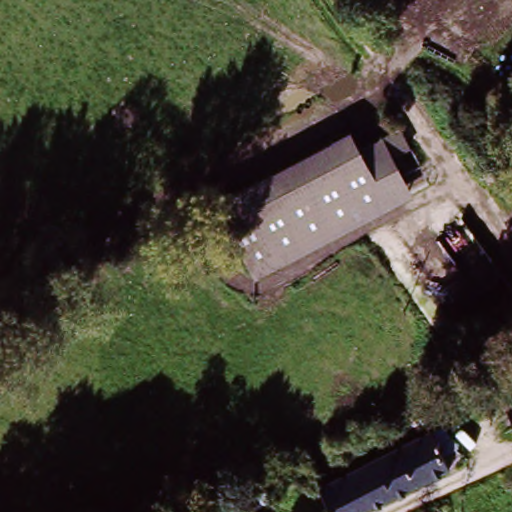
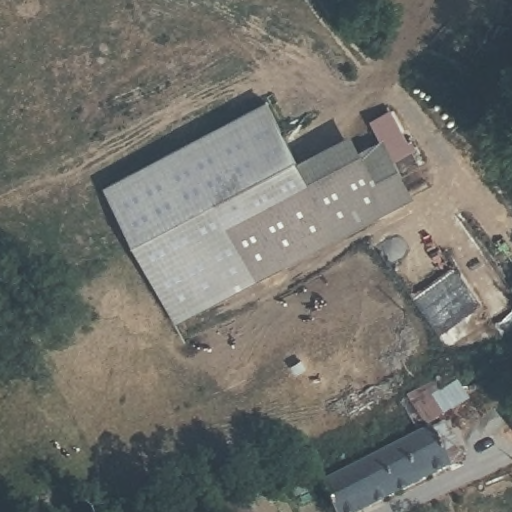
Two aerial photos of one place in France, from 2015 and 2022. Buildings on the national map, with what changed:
new [(371,119),(391,109),(407,141),(412,139),(417,147),(395,160),(414,196),(176,322),(103,185),(267,100),(298,158),(218,199),(240,240),(255,272),(390,202),(362,150),(380,139),(371,119)]
unchanged [(255,272),(218,199),(352,130),(390,202),(255,272)]
unchanged [(512,402),(512,417),(505,408),(512,402)]
unchanged [(413,441),(429,434),(440,455),(426,462),(428,467),(346,512),(343,512),(325,478),(408,432),(413,441)]
unchanged [(238,512),(200,512),(198,508),(230,495),(238,512)]

